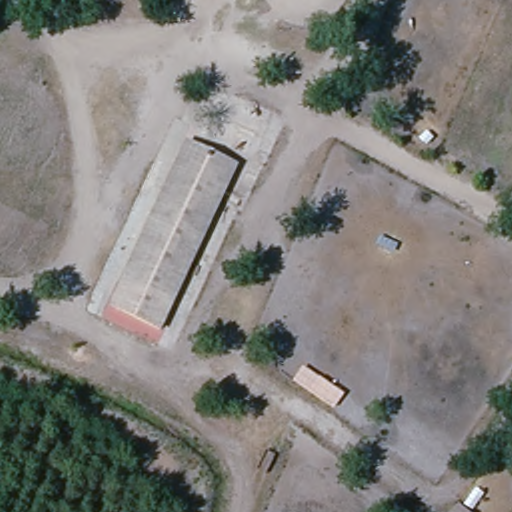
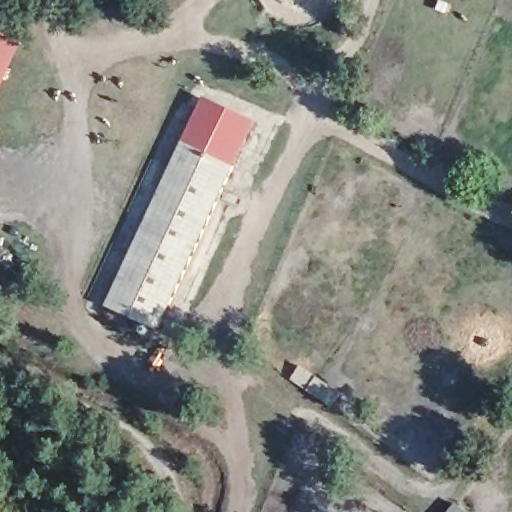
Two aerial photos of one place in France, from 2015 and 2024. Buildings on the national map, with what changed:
new [(19,62),(0,96),(0,31),(28,42),(19,62)]
new [(184,131),(204,98),(255,122),(235,155),(184,131)]
unchanged [(235,155),(160,317),(110,295),(184,131),(235,155)]
unchanged [(346,395),(333,408),(293,381),(303,366),(346,395)]
unchanged [(473,512),(450,512),(463,497),(476,508),(473,512)]

